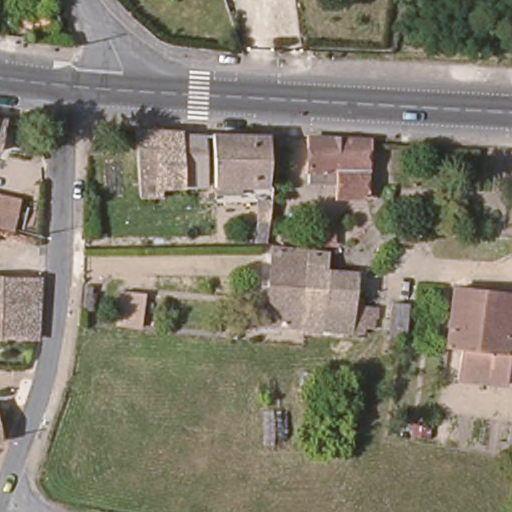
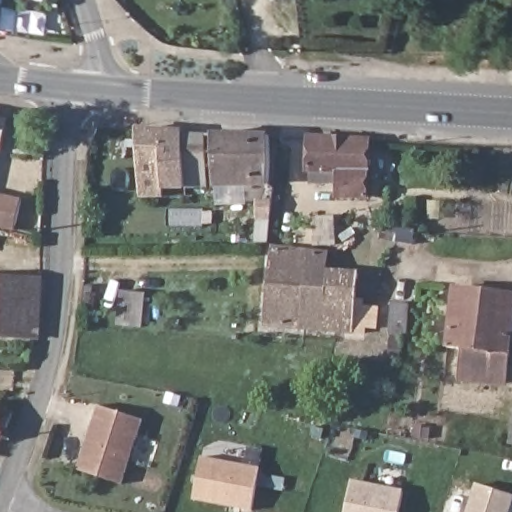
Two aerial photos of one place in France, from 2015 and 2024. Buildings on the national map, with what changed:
unchanged [(3,152),(0,151),(0,117),(9,119),(3,152)]
unchanged [(186,136),(185,192),(165,192),(165,202),(162,203),(139,203),(140,134),(186,136)]
unchanged [(307,163),(308,134),(368,138),(366,197),(334,195),(334,183),(306,181),(307,163)]
unchanged [(211,138),(211,192),(185,192),(186,136),(211,138)]
unchanged [(265,191),(211,192),(211,138),(270,141),(265,191)]
unchanged [(16,235),(0,230),(0,196),(22,203),(16,235)]
unchanged [(256,203),(271,204),(270,224),(255,224),(254,224),(256,203)]
unchanged [(412,238),(412,246),(395,246),(397,236),(412,238)]
unchanged [(321,256),(321,273),(352,278),(343,334),(261,324),(269,249),(321,256)]
unchanged [(0,279),(37,282),(36,340),(0,337),(0,279)]
unchanged [(507,383),(464,379),(466,342),(452,341),(457,285),(512,290),(512,327),(507,383)]
unchanged [(138,323),(115,321),(116,289),(139,290),(138,323)]
unchanged [(90,293),(88,297),(95,297),(94,319),(80,319),(82,292),(90,293)]
unchanged [(407,314),(403,346),(391,345),(394,313),(407,314)]
new [(122,484),(76,470),(97,405),(144,420),(122,484)]
unchanged [(0,430),(0,416),(4,416),(0,430)]
unchanged [(511,445),(512,438),(512,445),(511,445)]
new [(260,468),(252,512),(194,501),(202,457),(260,468)]
new [(400,512),(347,512),(353,480),(404,490),(400,512)]
new [(512,495),(512,508),(511,512),(467,512),(476,483),(512,495)]

